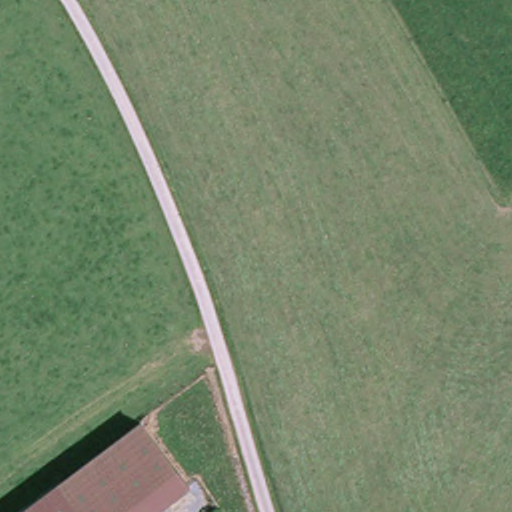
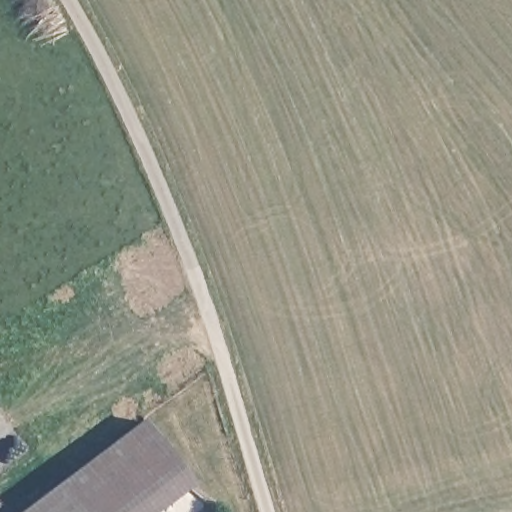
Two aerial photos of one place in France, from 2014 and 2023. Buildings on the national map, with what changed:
unchanged [(159,512),(19,512),(141,419),(192,487),(159,512)]

